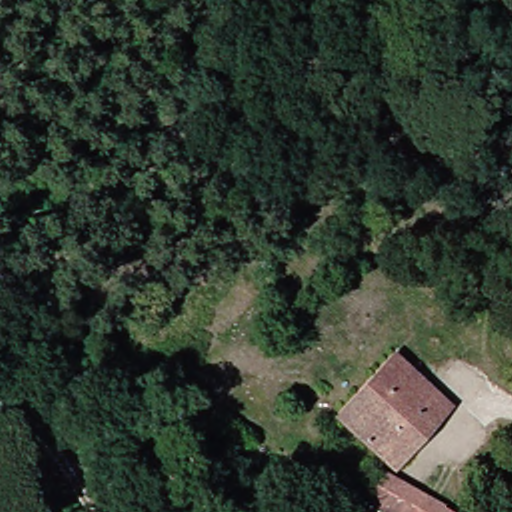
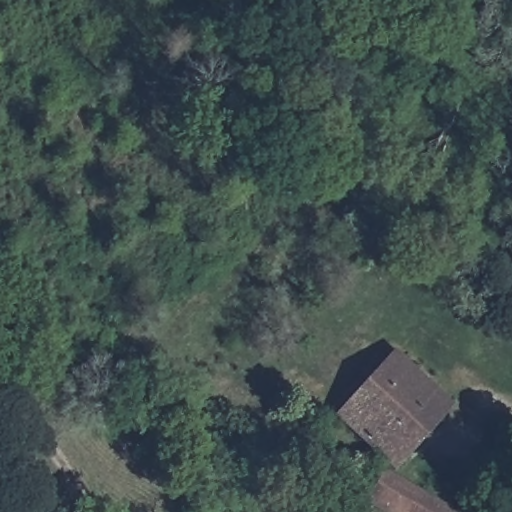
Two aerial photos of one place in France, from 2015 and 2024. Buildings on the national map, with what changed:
unchanged [(391,471),(328,413),(381,345),(442,404),(391,471)]
unchanged [(373,484),(416,504),(420,496),(450,510),(449,512),(378,512),(365,506),(373,484)]

